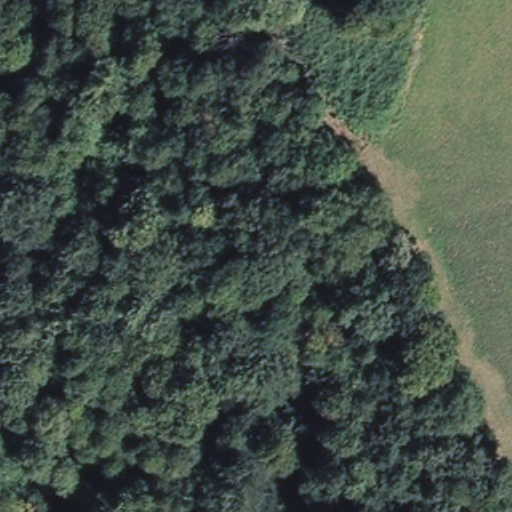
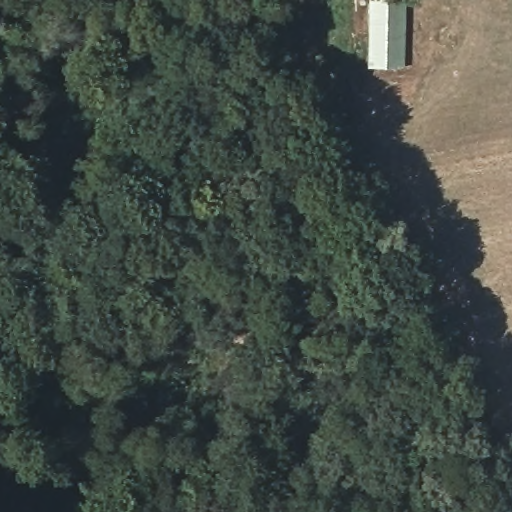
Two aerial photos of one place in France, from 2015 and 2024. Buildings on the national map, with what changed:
new [(368,0),(386,0),(386,69),(368,68),(368,0)]
new [(386,0),(406,0),(406,68),(386,69),(386,0)]

